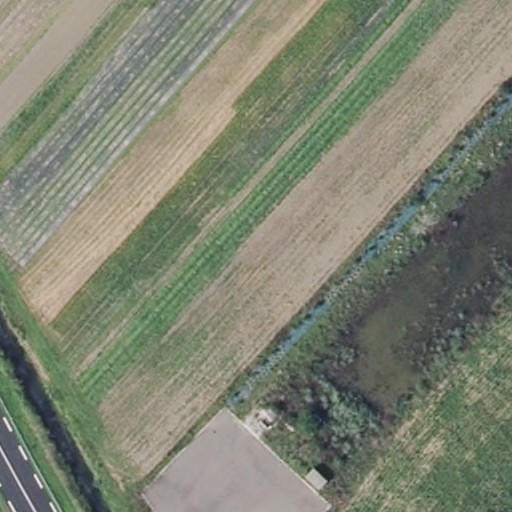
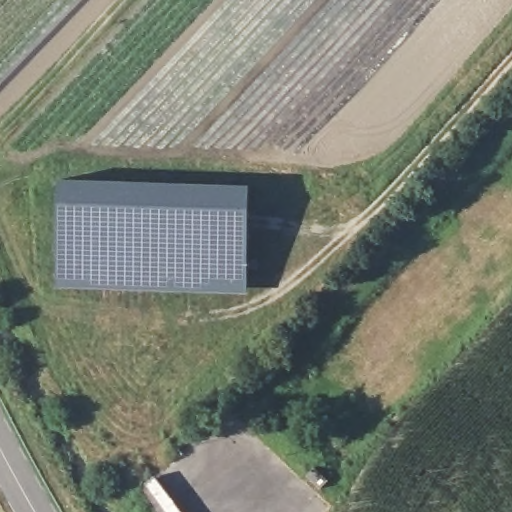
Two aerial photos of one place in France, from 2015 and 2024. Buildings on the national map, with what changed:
new [(61,179),(250,186),(247,293),(57,290),(61,179)]

